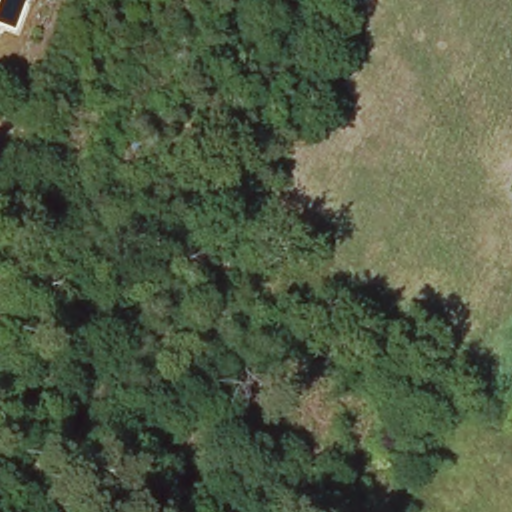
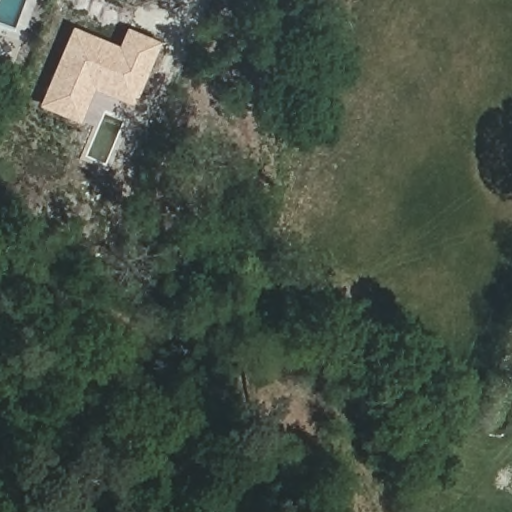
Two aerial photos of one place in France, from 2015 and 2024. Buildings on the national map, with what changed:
new [(119,46),(127,27),(162,42),(135,105),(95,88),(81,124),(40,106),(74,26),(119,46)]

